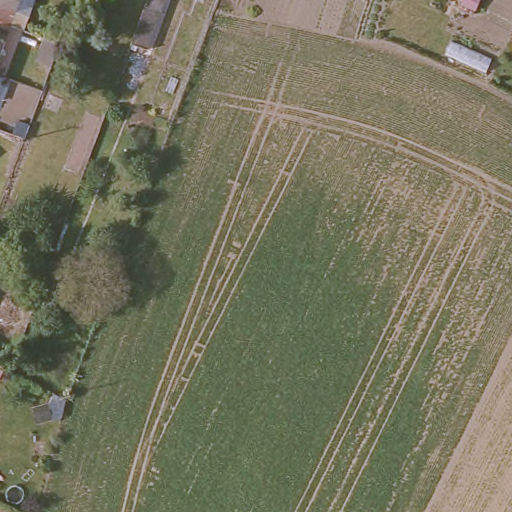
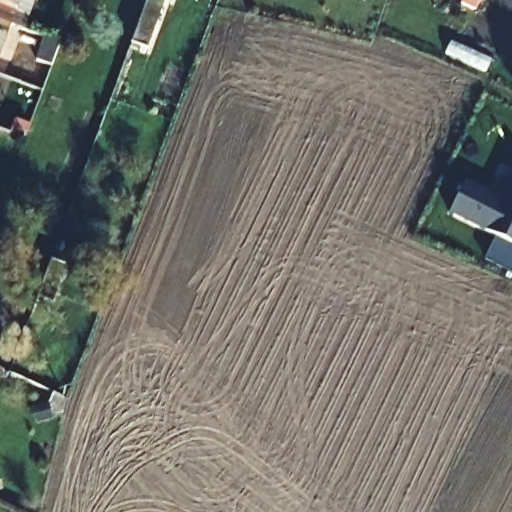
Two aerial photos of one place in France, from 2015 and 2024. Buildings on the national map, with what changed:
unchanged [(30,29),(17,25),(0,18),(0,0),(40,0),(30,29)]
unchanged [(90,0),(96,0),(95,2),(90,0)]
unchanged [(150,49),(132,42),(141,21),(149,0),(167,0),(150,49)]
unchanged [(477,10),(462,4),(463,0),(480,0),(477,10)]
unchanged [(0,70),(0,18),(17,25),(0,70)]
unchanged [(62,43),(53,66),(38,61),(47,37),(62,43)]
new [(497,235),(449,214),(467,180),(502,197),(512,175),(512,273),(485,260),(497,235)]
unchanged [(47,248),(62,254),(50,292),(33,287),(47,248)]
unchanged [(0,362),(0,350),(8,353),(4,363),(0,362)]

